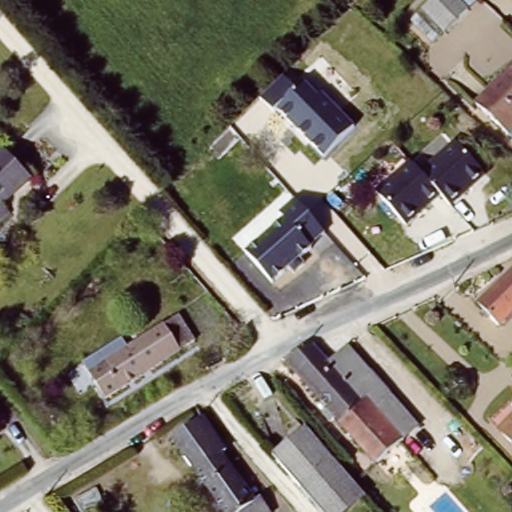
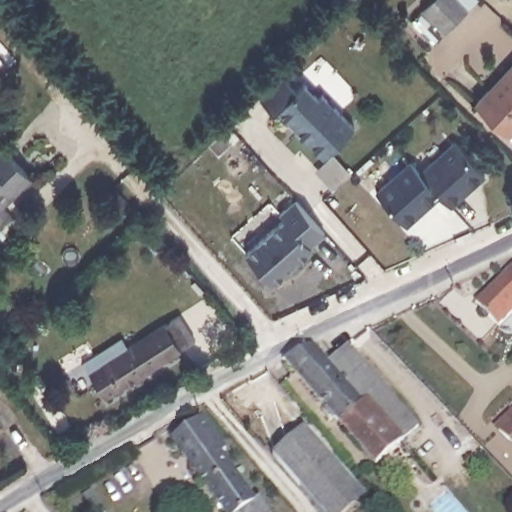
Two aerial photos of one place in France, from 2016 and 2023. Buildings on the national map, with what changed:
unchanged [(486,4),(433,48),(407,22),(429,0),(482,0),(486,4)]
unchanged [(512,63),(512,141),(470,106),(512,63)]
unchanged [(259,97),(284,73),(300,88),(305,83),(320,96),(324,93),(355,125),(324,156),(259,97)]
unchanged [(411,161),(422,174),(457,144),(485,175),(450,208),(439,196),(405,227),(375,193),(411,161)]
unchanged [(37,185),(0,219),(0,148),(37,185)]
unchanged [(275,300),(252,267),(312,223),(337,256),(275,300)]
unchanged [(472,309),(512,268),(512,315),(496,332),(472,309)]
unchanged [(83,364),(107,345),(110,348),(110,350),(112,353),(163,316),(179,305),(197,330),(185,338),(182,340),(107,395),(83,364)]
unchanged [(395,434),(368,401),(365,398),(360,402),(359,403),(354,397),(326,363),(325,361),(345,343),(387,389),(418,423),(401,440),(395,434)]
unchanged [(326,363),(354,397),(359,403),(360,402),(365,398),(368,401),(395,434),(401,440),(396,445),(377,461),(283,359),(312,346),(317,353),(325,361),(326,363)]
unchanged [(512,414),(512,458),(490,433),(512,414)]
unchanged [(223,456),(220,459),(224,464),(250,503),(252,506),(259,501),(266,512),(220,512),(172,442),(202,423),(225,455),(223,456)]
unchanged [(302,491),(300,488),(284,469),(270,452),(290,437),(300,428),(302,429),(329,462),(329,463),(333,468),(302,491)]
unchanged [(302,491),(333,468),(364,505),(354,512),(319,512),(305,495),(302,491)]

